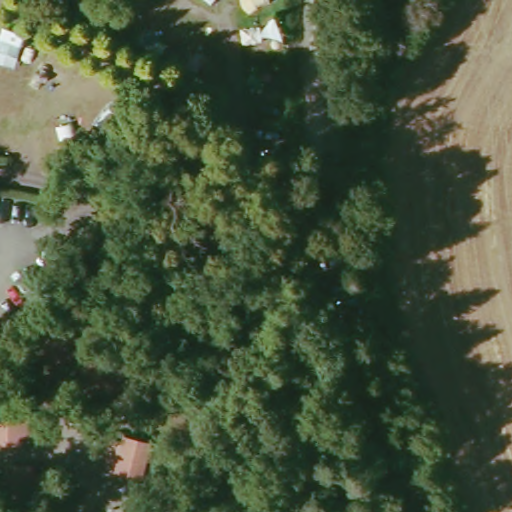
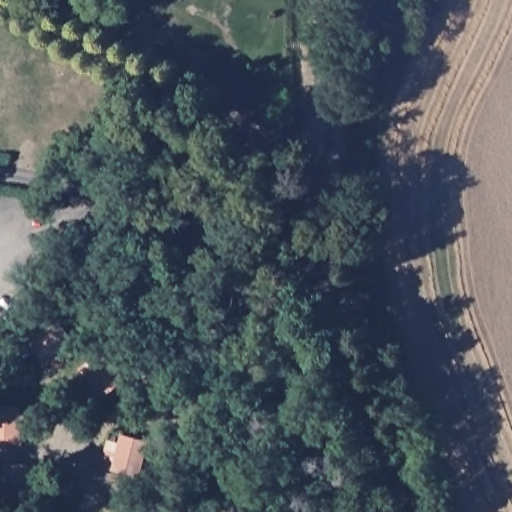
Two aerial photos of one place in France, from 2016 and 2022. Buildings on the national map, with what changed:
unchanged [(60,360),(51,365),(34,346),(69,318),(93,345),(64,369),(60,360)]
unchanged [(26,446),(0,447),(0,404),(25,403),(25,416),(35,417),(39,440),(26,437),(26,446)]
unchanged [(109,460),(121,453),(113,444),(138,432),(156,469),(120,481),(109,460)]
unchanged [(40,497),(38,506),(9,502),(12,465),(41,467),(41,472),(49,475),(51,498),(40,497)]

